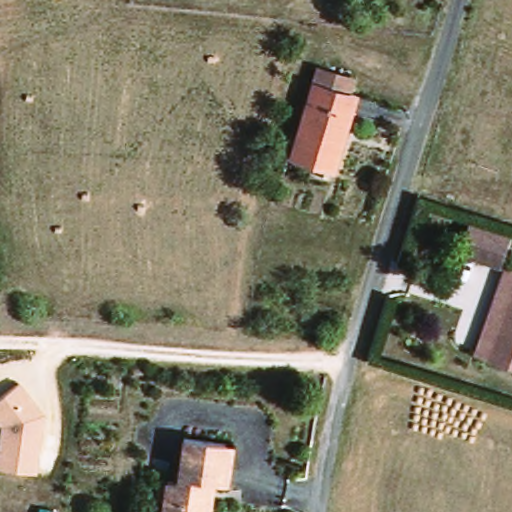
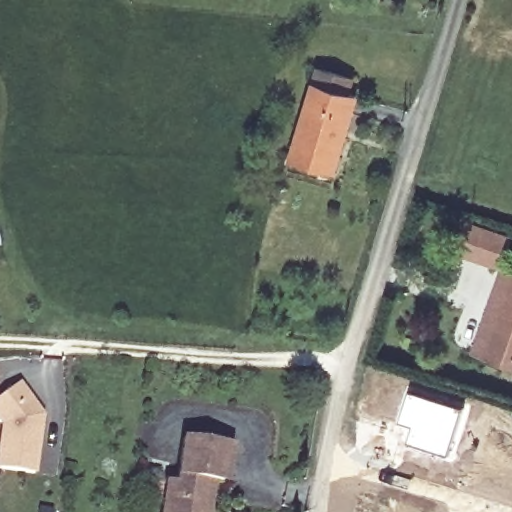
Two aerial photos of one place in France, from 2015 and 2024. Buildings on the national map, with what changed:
unchanged [(351,78),(347,94),(356,96),(336,169),(295,159),(318,70),(351,78)]
unchanged [(459,258),(471,227),(508,241),(500,270),(459,258)]
unchanged [(506,277),(512,279),(512,368),(481,358),(506,277)]
unchanged [(20,381),(45,415),(38,472),(0,466),(0,424),(0,396),(20,381)]
new [(409,390),(466,409),(451,459),(407,442),(412,425),(399,421),(409,390)]
unchanged [(164,485),(174,486),(180,442),(220,447),(229,447),(225,489),(215,489),(209,489),(206,512),(161,512),(164,485)]

